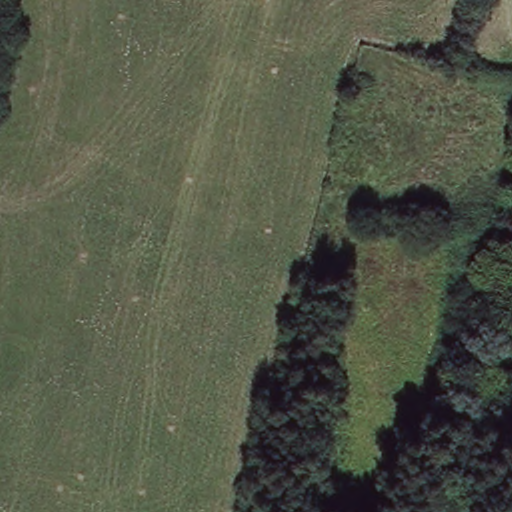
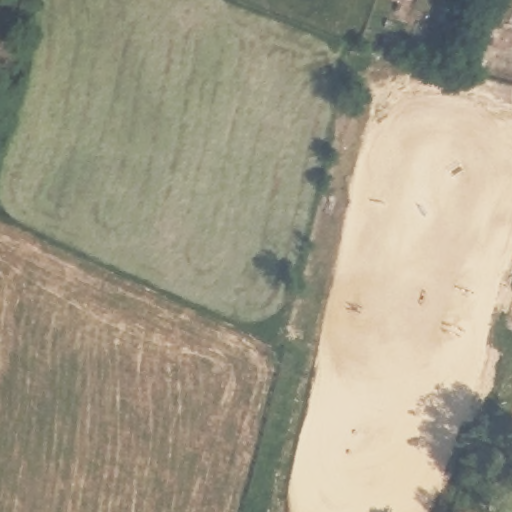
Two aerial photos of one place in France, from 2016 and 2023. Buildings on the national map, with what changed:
[]

